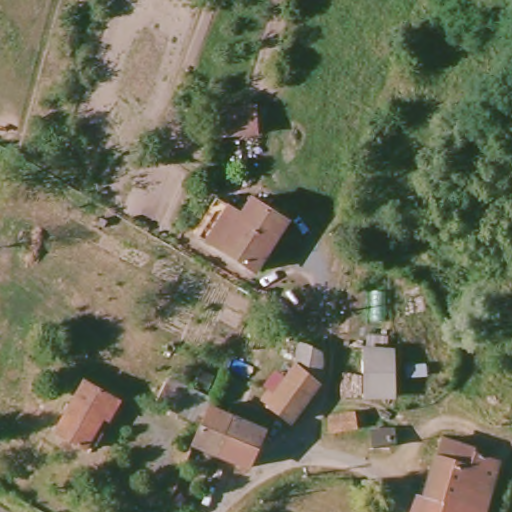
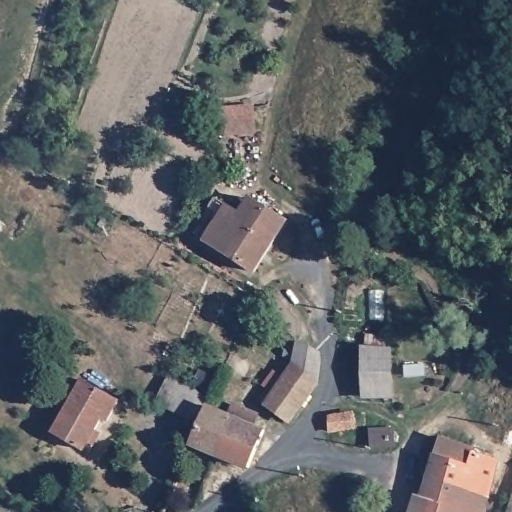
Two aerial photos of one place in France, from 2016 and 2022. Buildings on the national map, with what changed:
unchanged [(238,137),(224,139),(223,130),(221,109),(256,106),(259,137),(238,137)]
unchanged [(256,270),(200,240),(204,233),(197,229),(212,200),(238,214),(247,197),(284,216),(281,222),(256,270)]
unchanged [(326,357),(322,385),(293,423),(273,409),(269,405),(291,372),(301,346),(326,357)]
unchanged [(364,396),(363,375),(362,352),(391,353),(394,395),(364,396)]
unchanged [(119,400),(108,420),(103,418),(85,449),(58,433),(87,382),(119,400)]
unchanged [(165,409),(175,383),(202,394),(192,419),(165,409)]
unchanged [(214,410),(226,416),(233,404),(254,412),(251,425),(256,428),(262,432),(255,448),(248,465),(220,454),(197,444),(214,410)]
unchanged [(344,431),(327,430),(327,415),(345,415),(364,415),(364,431),(344,431)]
unchanged [(370,433),(396,434),(396,450),(369,449),(370,433)]
unchanged [(486,512),(411,512),(417,491),(423,495),(442,435),(496,456),(486,512)]

